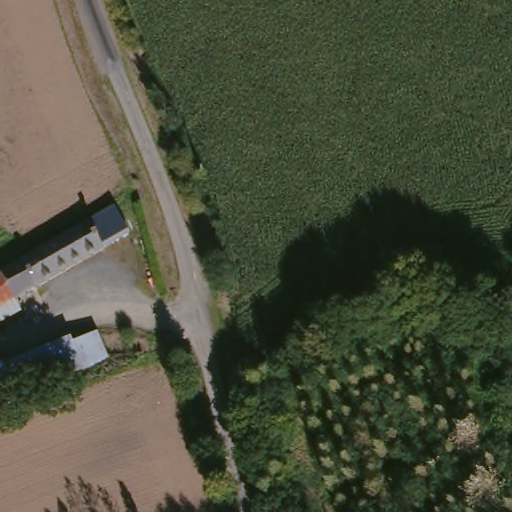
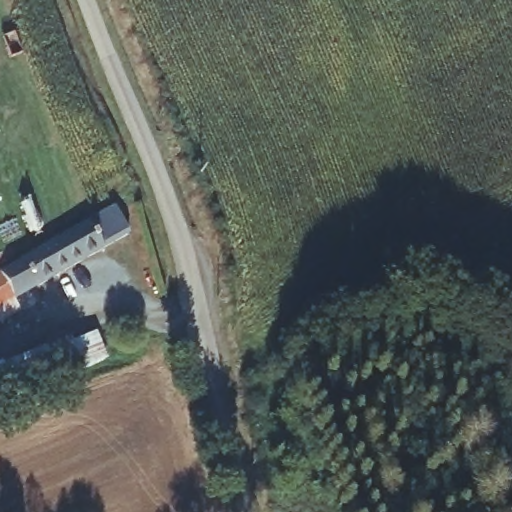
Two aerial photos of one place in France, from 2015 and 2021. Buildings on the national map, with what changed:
unchanged [(119,240),(93,256),(14,304),(0,281),(0,276),(77,230),(103,214),(119,240)]
unchanged [(0,281),(14,304),(23,319),(0,333),(0,281)]
unchanged [(3,377),(94,334),(106,356),(17,399),(3,377)]
unchanged [(0,373),(1,373),(3,377),(17,399),(0,405),(0,373)]

